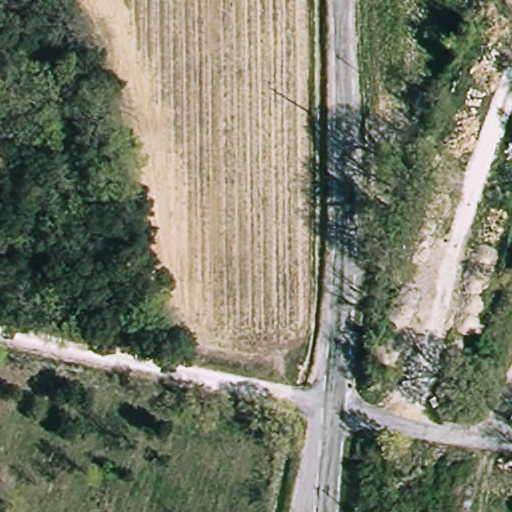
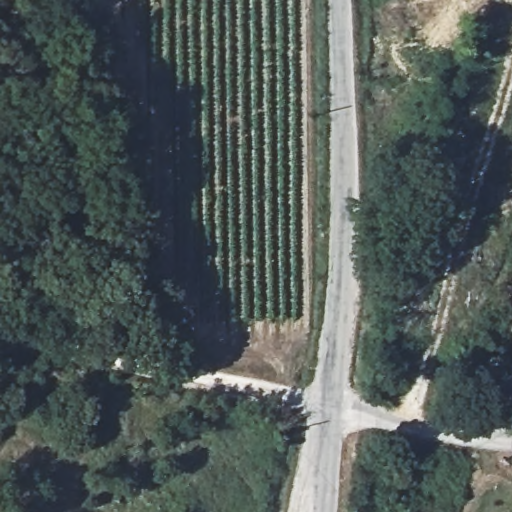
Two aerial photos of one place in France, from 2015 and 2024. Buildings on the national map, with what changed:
[]

